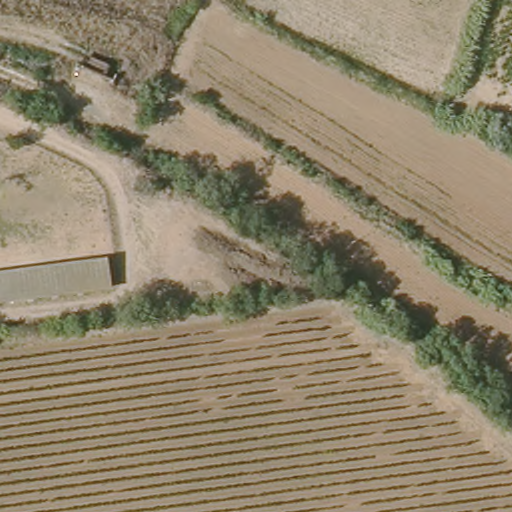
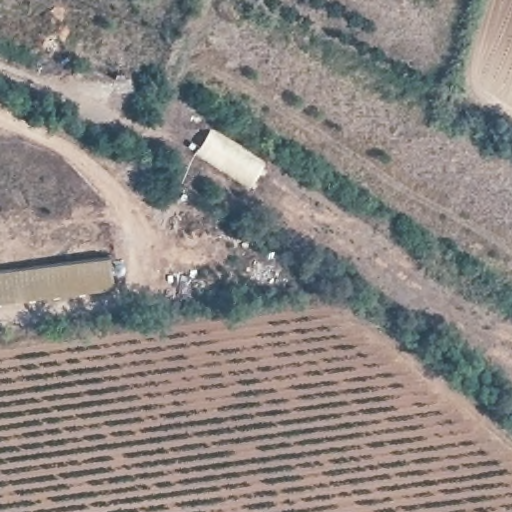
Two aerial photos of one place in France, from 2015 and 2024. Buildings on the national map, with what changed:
unchanged [(112,252),(119,285),(0,301),(0,268),(112,252)]

